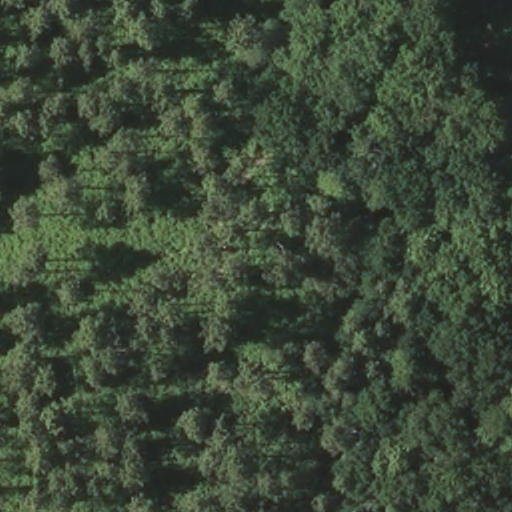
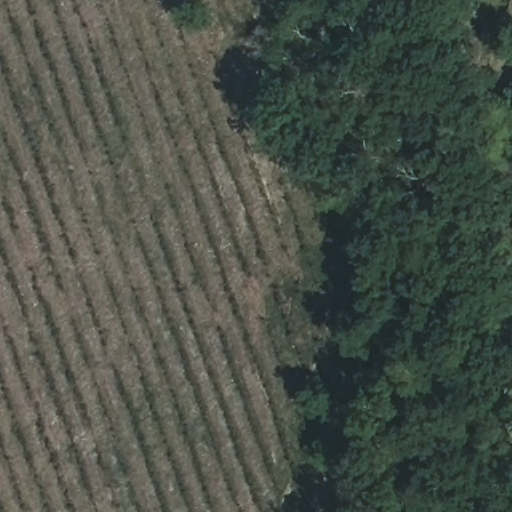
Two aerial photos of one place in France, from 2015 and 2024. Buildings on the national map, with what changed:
unchanged [(473,512),(466,512),(458,502),(470,492),(479,507),(473,512)]

